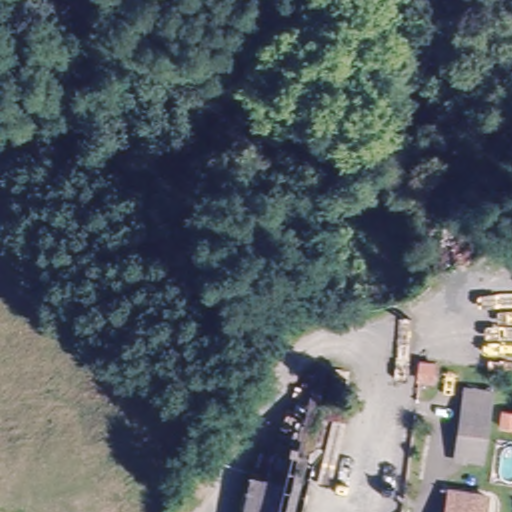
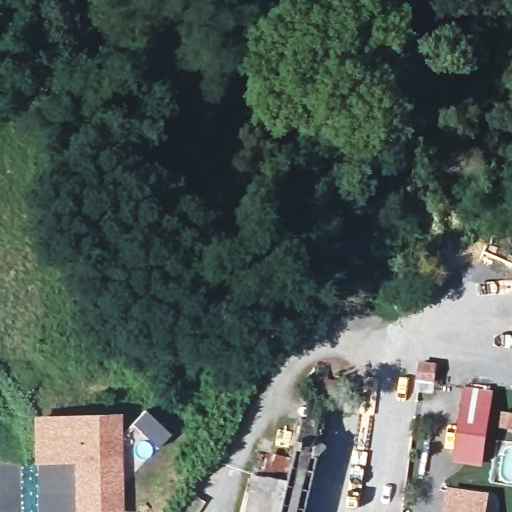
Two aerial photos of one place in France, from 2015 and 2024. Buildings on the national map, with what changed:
unchanged [(436,367),(434,382),(420,380),(421,365),(436,367)]
unchanged [(482,462),(455,457),(465,390),(493,393),(482,462)]
unchanged [(501,427),(503,412),(512,413),(512,429),(501,427)]
new [(35,417),(120,415),(124,512),(76,512),(74,463),(34,464),(35,417)]
unchanged [(250,468),(265,469),(266,451),(280,453),(279,473),(286,474),(278,512),(242,512),(250,468)]
unchanged [(317,460),(305,512),(282,512),(295,455),(317,460)]
unchanged [(450,491),(487,496),(485,512),(447,512),(450,491)]

